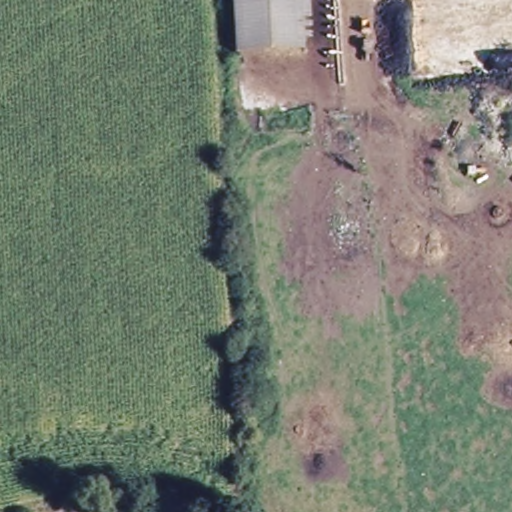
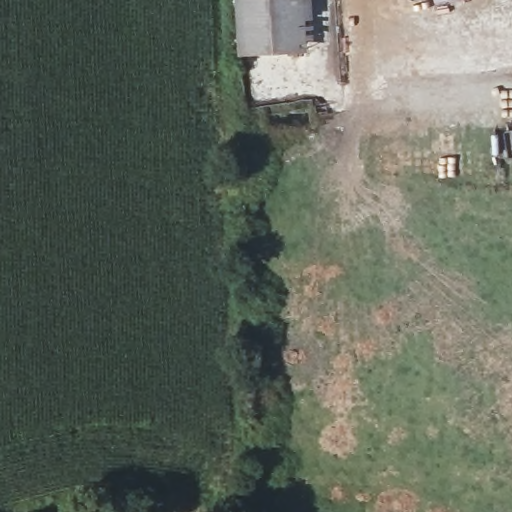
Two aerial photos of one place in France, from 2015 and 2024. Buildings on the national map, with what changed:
unchanged [(236,54),(233,0),(308,0),(311,51),(236,54)]

